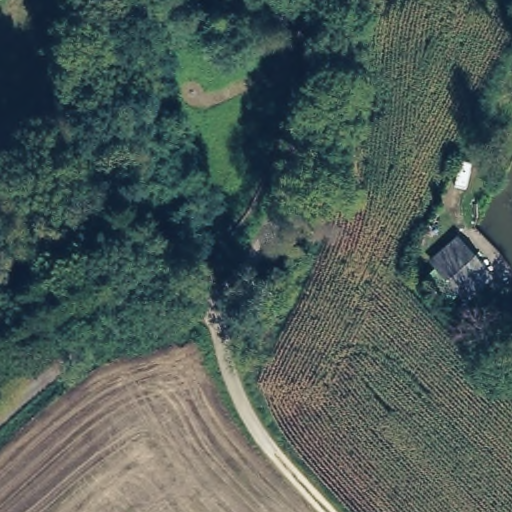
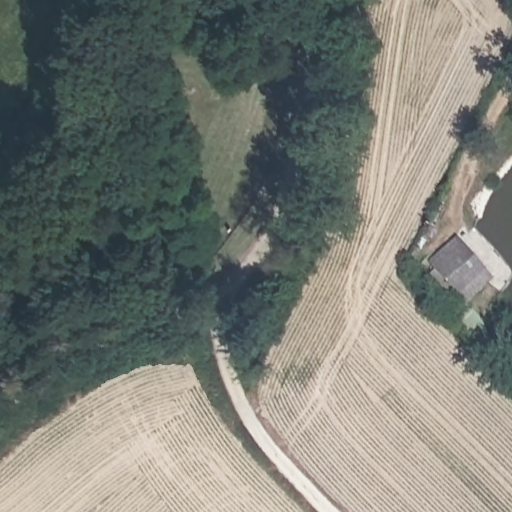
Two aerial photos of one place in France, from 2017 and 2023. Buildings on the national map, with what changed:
unchanged [(493,279),(458,307),(425,264),(458,240),(493,279)]

